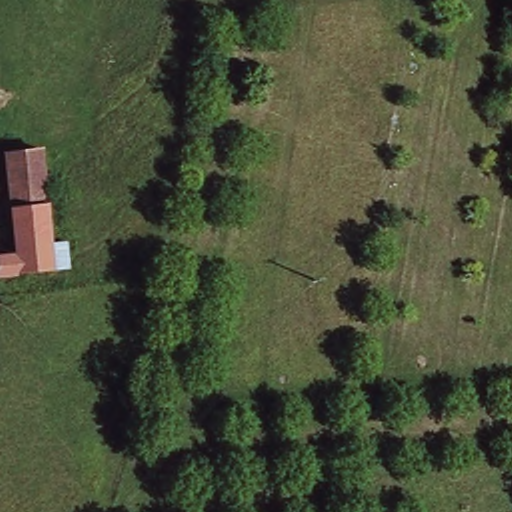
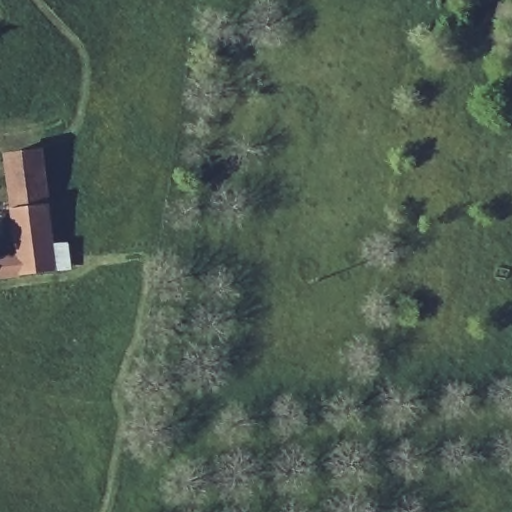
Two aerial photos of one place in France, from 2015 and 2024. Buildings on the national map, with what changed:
unchanged [(47,200),(17,202),(12,156),(44,154),(47,200)]
unchanged [(0,264),(0,251),(20,250),(17,202),(47,200),(52,269),(2,276),(0,264)]

